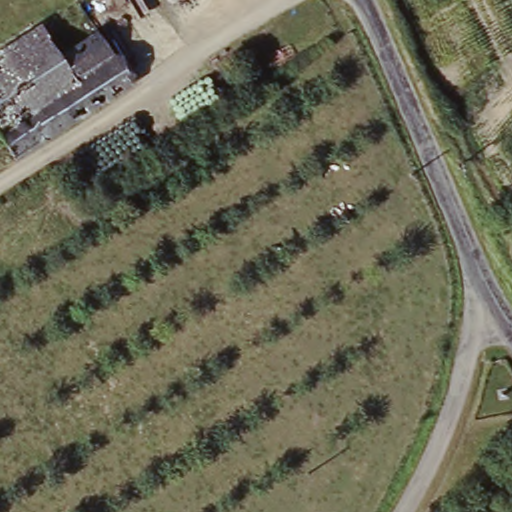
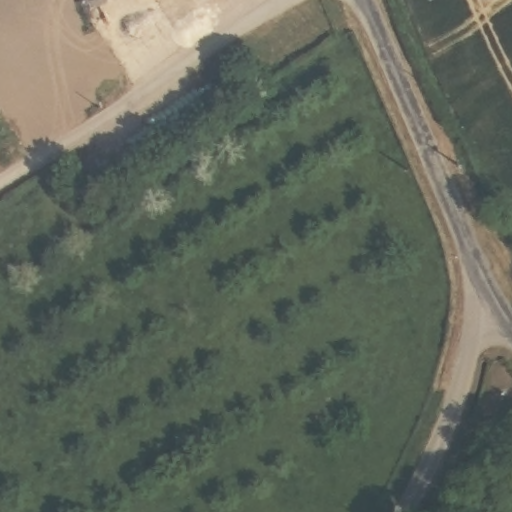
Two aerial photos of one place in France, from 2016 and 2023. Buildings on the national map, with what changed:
demolished [(41,26),(62,59),(100,36),(135,85),(11,166),(0,148),(0,53),(41,26)]

